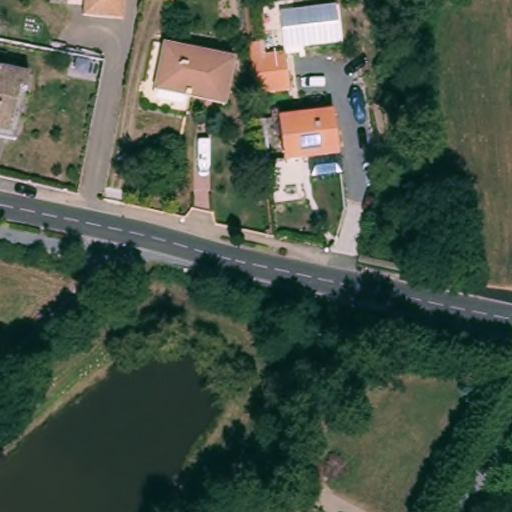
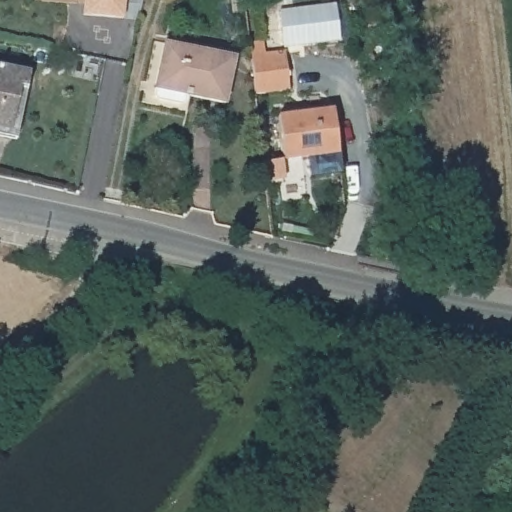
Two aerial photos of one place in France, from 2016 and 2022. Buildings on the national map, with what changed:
unchanged [(85,0),(129,0),(127,18),(85,15),(85,0)]
unchanged [(176,0),(179,0),(179,1),(176,0)]
unchanged [(285,48),(281,11),(337,6),(341,42),(285,48)]
unchanged [(250,44),(263,42),(265,54),(285,52),(289,90),(256,94),(250,44)]
unchanged [(228,105),(189,96),(187,103),(184,106),(160,101),(157,96),(160,86),(168,45),(239,60),(228,105)]
unchanged [(16,142),(0,139),(0,68),(22,73),(29,74),(16,142)]
unchanged [(313,157),(289,160),(283,116),(338,110),(342,148),(343,154),(313,157)]

